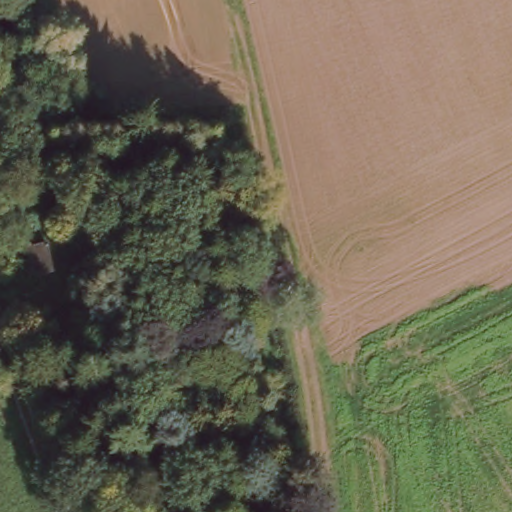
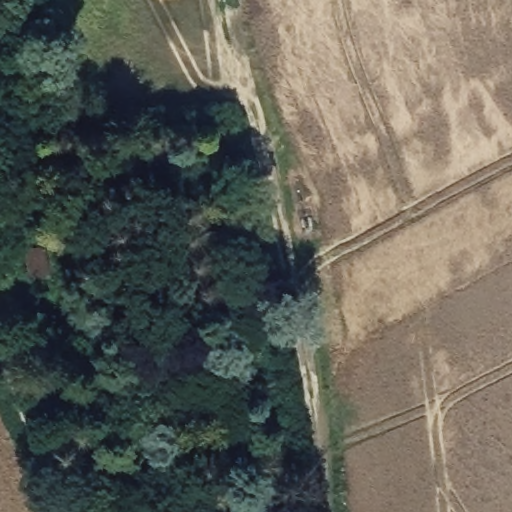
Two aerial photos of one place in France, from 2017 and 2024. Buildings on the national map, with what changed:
unchanged [(31,256),(31,249),(49,244),(57,274),(38,280),(31,256)]

